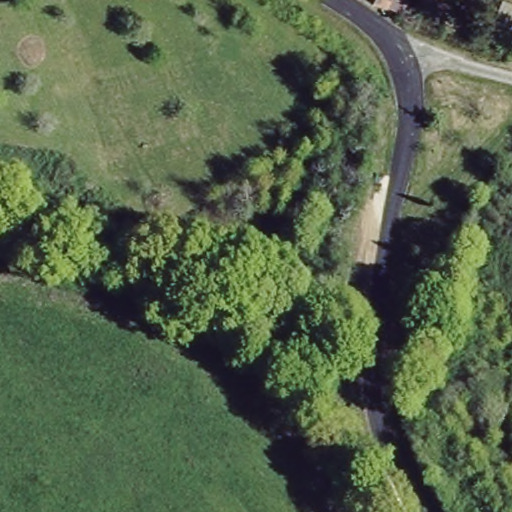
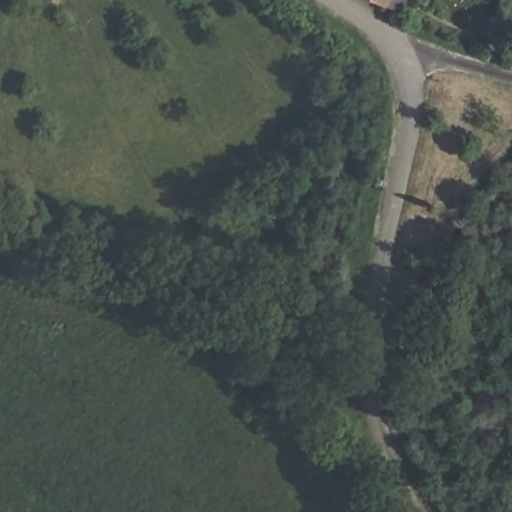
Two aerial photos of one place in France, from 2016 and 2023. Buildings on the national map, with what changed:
unchanged [(381,0),(386,0),(385,2),(381,0)]
unchanged [(497,9),(512,14),(502,39),(488,32),(497,9)]

